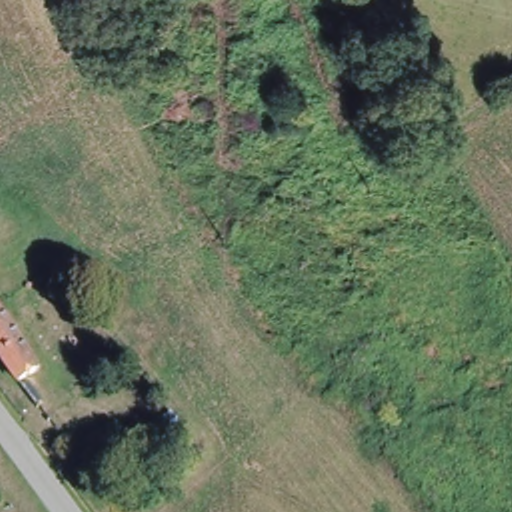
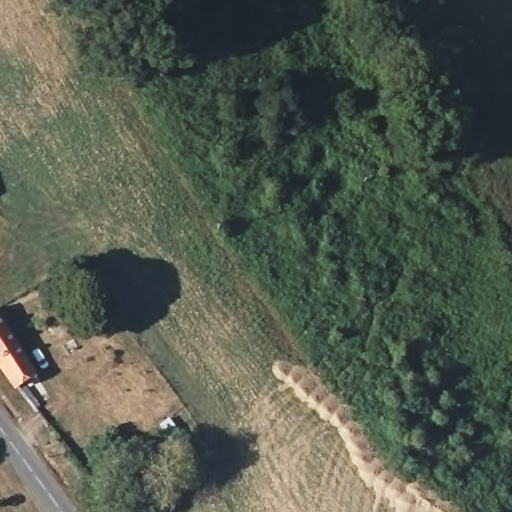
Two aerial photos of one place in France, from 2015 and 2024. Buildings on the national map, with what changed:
unchanged [(22,388),(0,358),(0,322),(37,377),(22,388)]

